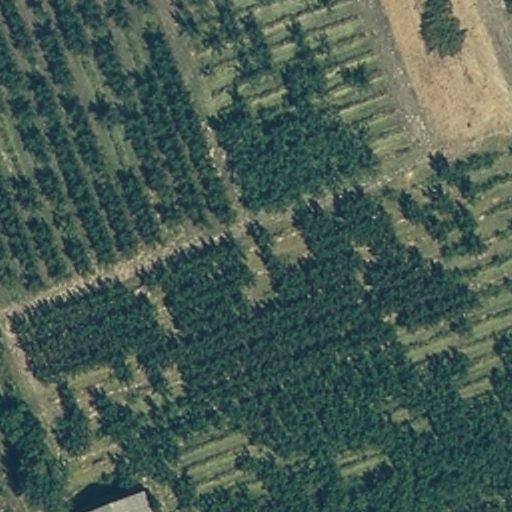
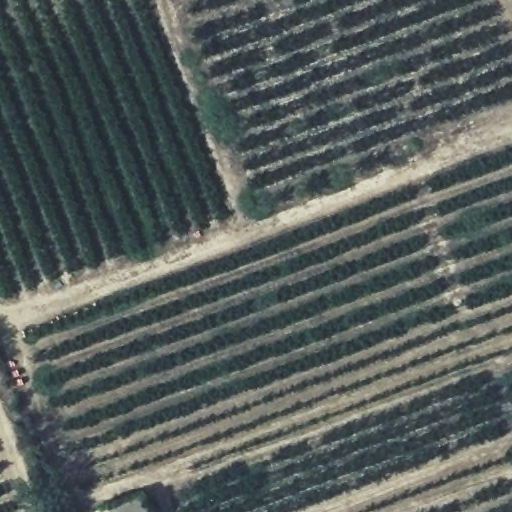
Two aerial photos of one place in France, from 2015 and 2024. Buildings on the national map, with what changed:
unchanged [(145,491),(153,512),(92,512),(145,491)]

